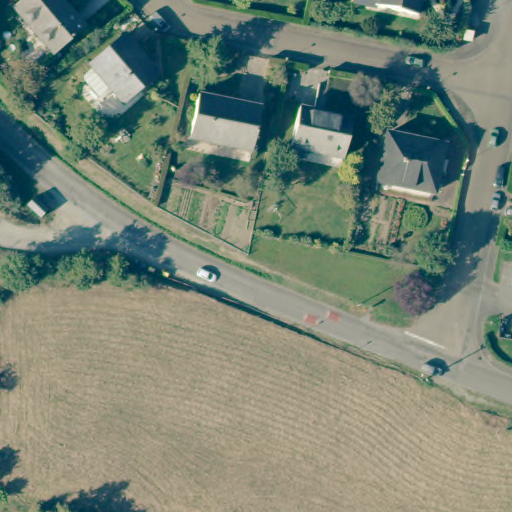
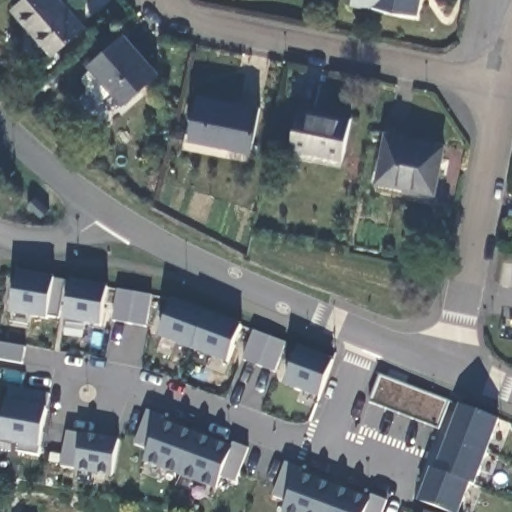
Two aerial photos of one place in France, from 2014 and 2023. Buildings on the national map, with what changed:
unchanged [(53,55),(12,7),(21,0),(62,0),(85,27),(53,55)]
unchanged [(386,7),(362,2),(363,0),(429,0),(426,15),(386,7)]
unchanged [(104,99),(87,80),(88,75),(97,67),(95,64),(129,35),(162,74),(128,103),(119,91),(109,99),(104,99)]
unchanged [(256,152),(193,139),(202,95),(265,108),(256,152)]
unchanged [(348,159),(296,148),(303,108),(356,118),(348,159)]
unchanged [(443,145),(434,192),(377,181),(387,133),(443,145)]
new [(60,318),(49,317),(48,319),(12,313),(19,272),(56,278),(55,280),(67,280),(60,318)]
new [(102,327),(67,321),(72,281),(109,288),(102,327)]
new [(147,327),(114,322),(119,290),(152,295),(147,327)]
new [(229,363),(161,338),(174,299),(242,325),(229,363)]
new [(277,372),(244,361),(255,331),(287,343),(277,372)]
new [(26,347),(23,364),(0,360),(0,343),(26,347)]
new [(286,384),(301,348),(335,361),(321,398),(286,384)]
new [(439,428),(370,402),(380,375),(448,401),(439,428)]
new [(49,408),(42,447),(41,455),(21,452),(21,444),(1,441),(7,402),(10,387),(50,394),(49,408)]
new [(475,485),(471,483),(461,512),(450,512),(420,501),(432,468),(436,469),(461,405),(499,419),(475,485)]
new [(164,416),(162,420),(232,447),(235,442),(249,449),(237,482),(222,476),(217,489),(146,462),(150,451),(137,444),(150,410),(164,416)]
new [(82,433),(120,439),(114,476),(63,467),(69,432),(82,433)]
new [(315,477),(371,498),(372,495),(387,501),(383,512),(284,512),(288,503),(275,496),(287,462),(317,474),(315,477)]

